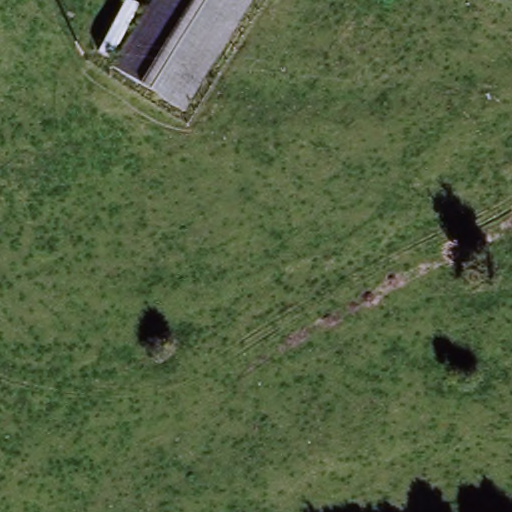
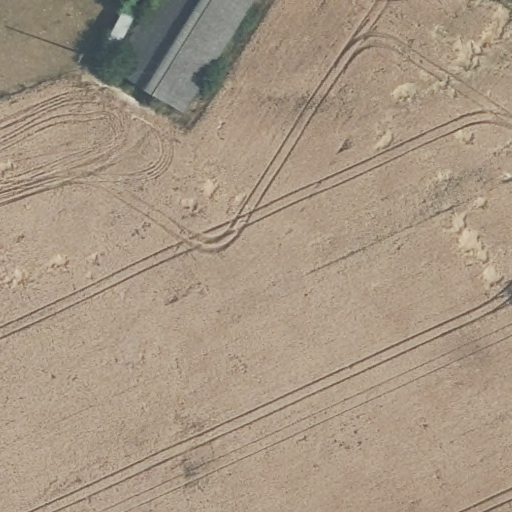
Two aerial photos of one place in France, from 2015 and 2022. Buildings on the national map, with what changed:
unchanged [(179,118),(106,72),(150,0),(252,0),(179,118)]

